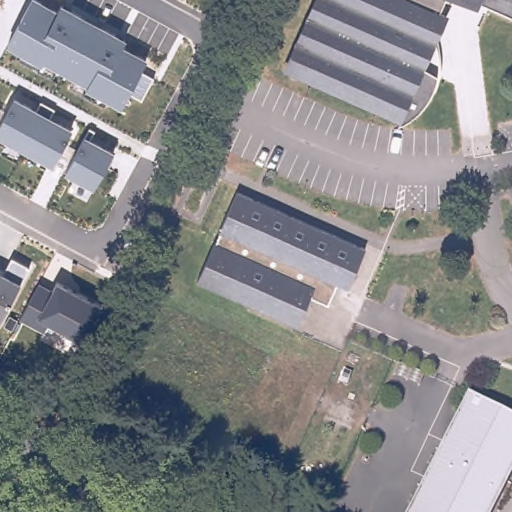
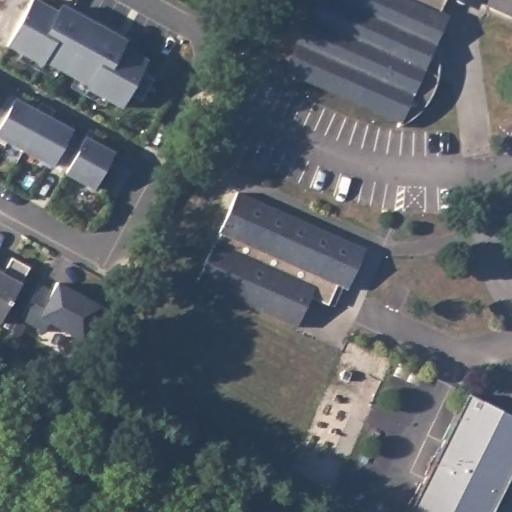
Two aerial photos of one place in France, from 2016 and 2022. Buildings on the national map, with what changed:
unchanged [(60,4),(126,39),(123,47),(146,60),(141,72),(154,79),(141,100),(130,94),(120,109),(86,90),(88,86),(45,64),(43,66),(6,47),(31,0),(36,0),(55,10),(60,4)]
unchanged [(418,56),(436,69),(436,70),(436,71),(436,74),(435,77),(435,79),(434,81),(433,84),(428,91),(425,97),(422,102),(418,106),(416,109),(414,111),(411,114),(407,117),(404,119),(401,122),(397,124),(395,125),(393,126),(399,112),(392,109),(389,116),(287,69),(318,0),(418,0),(437,9),(418,56)]
unchanged [(418,0),(441,0),(437,9),(418,0)]
unchanged [(483,0),(512,0),(512,17),(483,0)]
unchanged [(0,139),(0,124),(14,99),(71,130),(51,166),(0,139)]
unchanged [(95,190),(64,176),(86,139),(114,152),(95,190)]
unchanged [(365,249),(346,290),(333,283),(325,302),(309,295),(295,325),(195,280),(236,190),(365,249)]
unchanged [(10,258),(28,267),(19,282),(0,320),(0,271),(4,273),(10,258)]
unchanged [(39,284),(51,291),(56,283),(94,304),(75,337),(50,325),(43,332),(20,319),(39,284)]
unchanged [(468,396),(512,418),(512,471),(491,512),(409,512),(468,396)]

